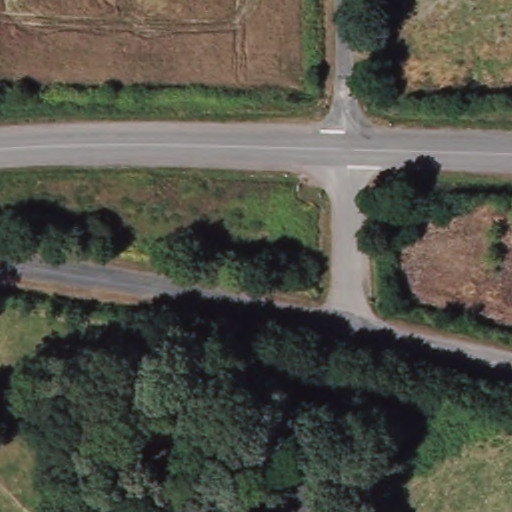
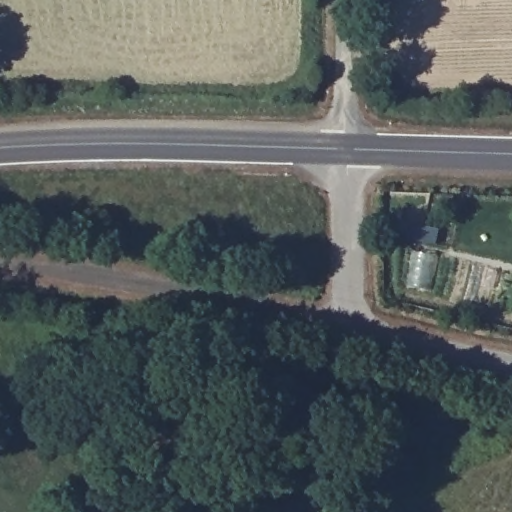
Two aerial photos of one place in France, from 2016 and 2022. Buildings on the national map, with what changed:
[]

